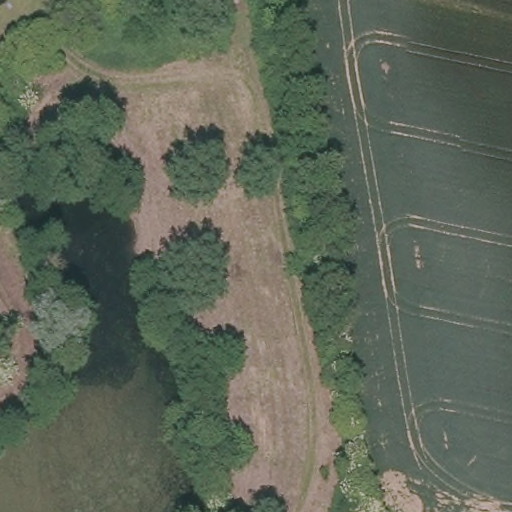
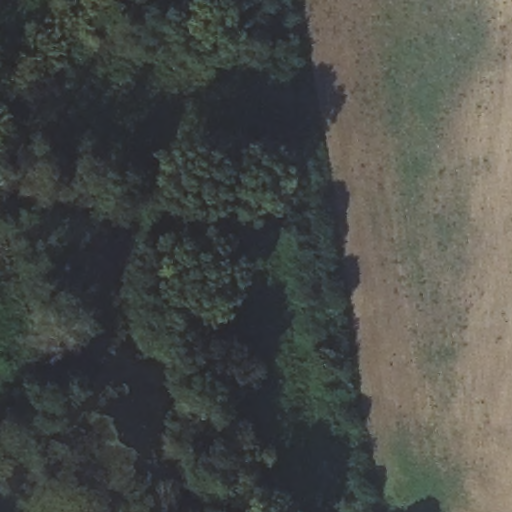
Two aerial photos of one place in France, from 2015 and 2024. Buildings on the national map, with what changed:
unchanged [(267,18),(246,26),(237,14),(259,4),(267,18)]

